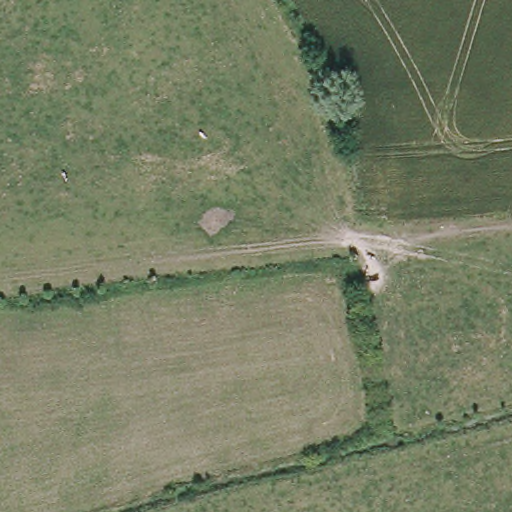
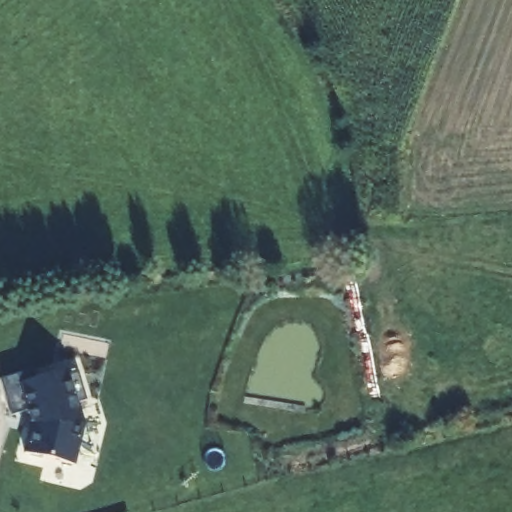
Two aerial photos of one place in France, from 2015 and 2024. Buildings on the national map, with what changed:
new [(33,378),(65,368),(66,373),(76,370),(85,399),(75,402),(81,423),(71,464),(23,452),(30,424),(25,410),(10,414),(0,383),(0,378),(30,368),(33,378)]

